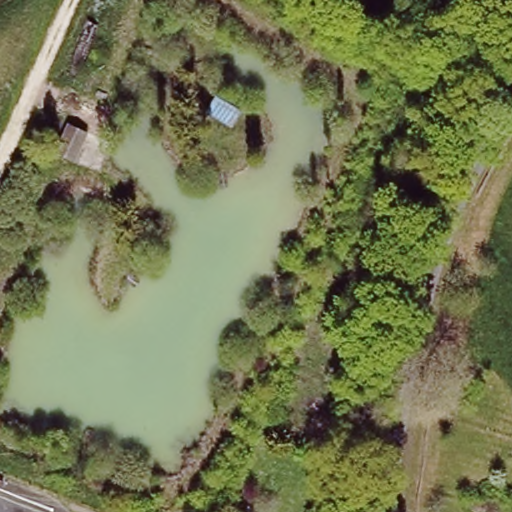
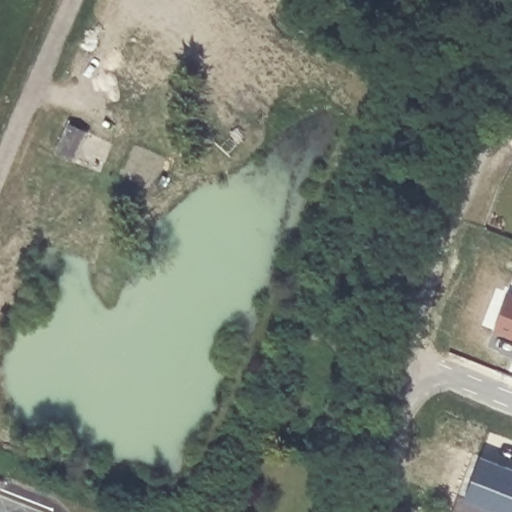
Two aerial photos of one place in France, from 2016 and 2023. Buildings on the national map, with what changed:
unchanged [(58,151),(68,120),(92,130),(82,159),(58,151)]
new [(509,291),(512,292),(512,335),(494,328),(509,291)]
new [(512,466),(512,512),(475,512),(462,507),(483,454),(512,466)]

